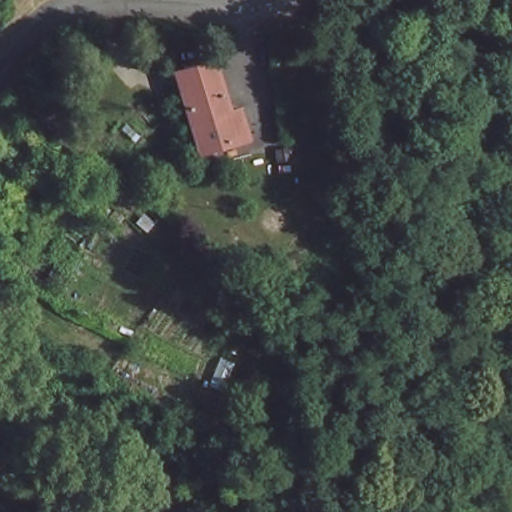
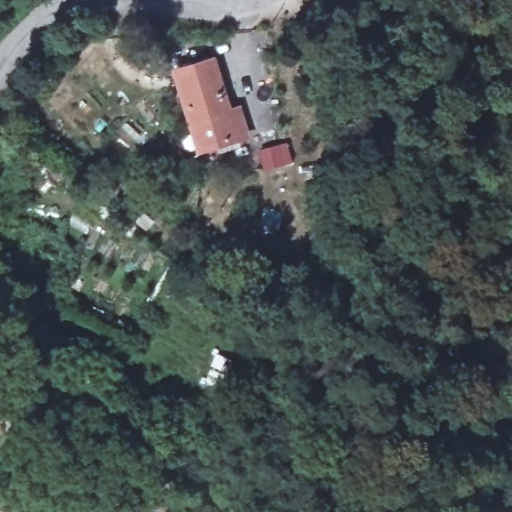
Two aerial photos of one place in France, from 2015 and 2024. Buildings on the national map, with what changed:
unchanged [(200,146),(192,121),(187,124),(171,70),(207,59),(222,112),(230,109),(237,132),(233,134),(200,146)]

